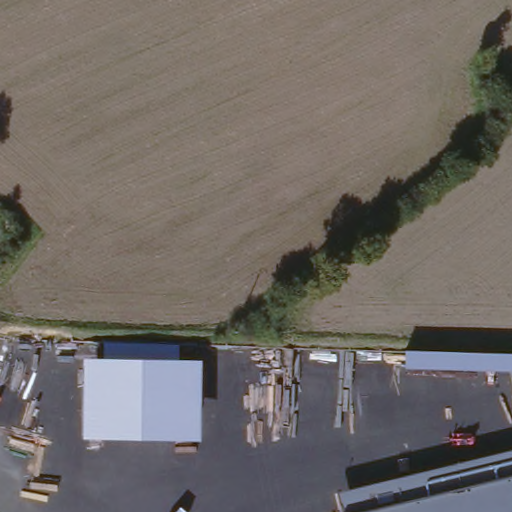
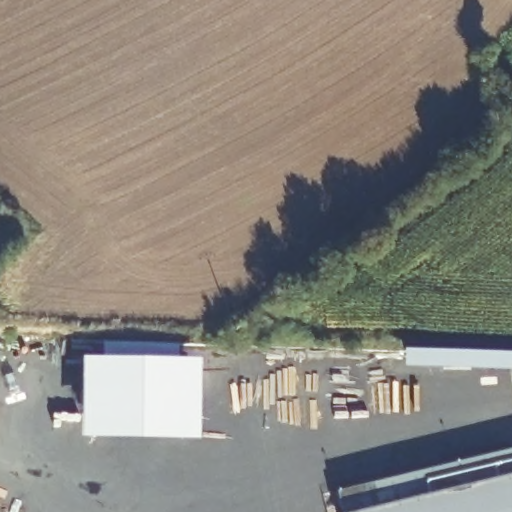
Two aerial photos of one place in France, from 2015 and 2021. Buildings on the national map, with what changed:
unchanged [(198,442),(81,439),(80,358),(198,361),(198,442)]
unchanged [(512,451),(512,512),(343,512),(339,494),(512,451)]

